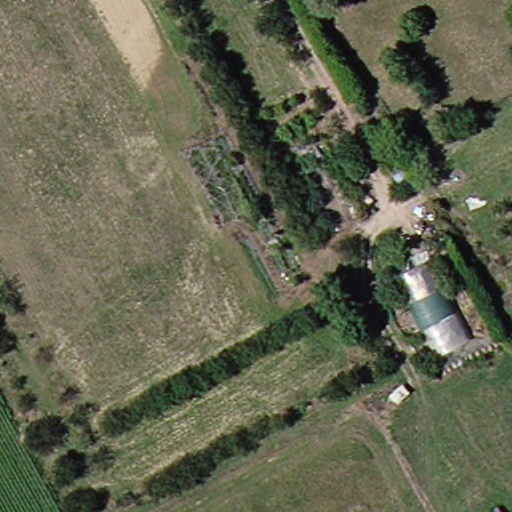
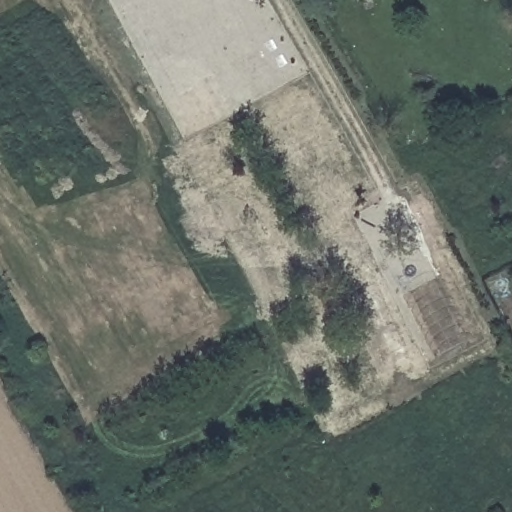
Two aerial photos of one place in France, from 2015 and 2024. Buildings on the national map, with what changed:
new [(397,275),(429,260),(468,342),(439,355),(397,275)]

